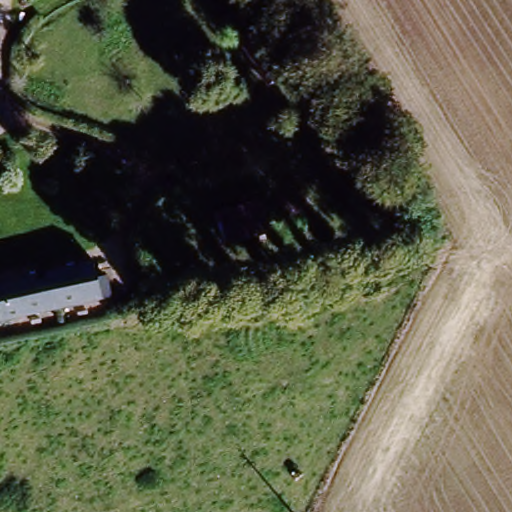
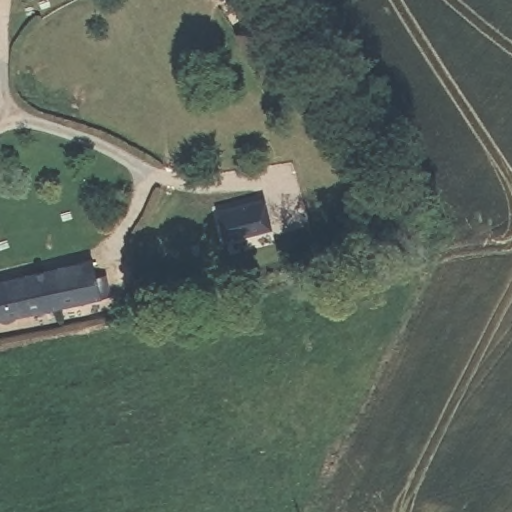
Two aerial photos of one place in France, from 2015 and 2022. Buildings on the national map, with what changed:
unchanged [(268,12),(301,62),(293,68),(267,85),(234,35),(260,17),(268,12)]
unchanged [(219,242),(209,213),(254,202),(262,231),(219,242)]
unchanged [(95,272),(105,271),(109,291),(0,314),(0,276),(92,255),(95,272)]

